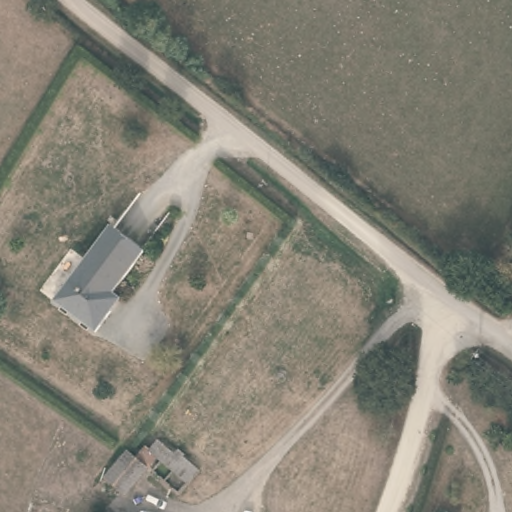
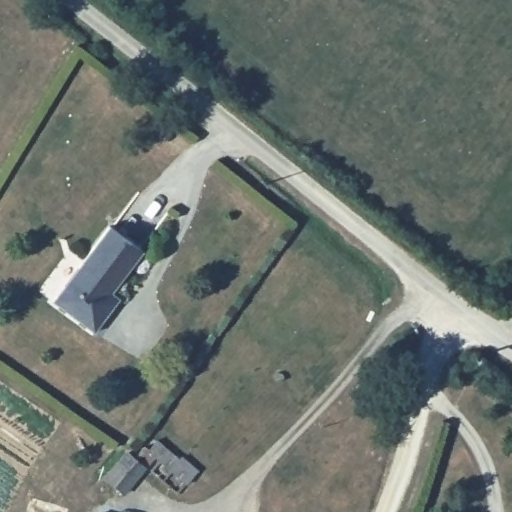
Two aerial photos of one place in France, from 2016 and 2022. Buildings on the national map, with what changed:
unchanged [(110,226),(144,252),(114,293),(120,299),(96,333),(53,302),(110,226)]
unchanged [(143,456),(155,440),(200,474),(186,488),(143,456)]
unchanged [(99,482),(121,449),(146,469),(119,499),(99,482)]

